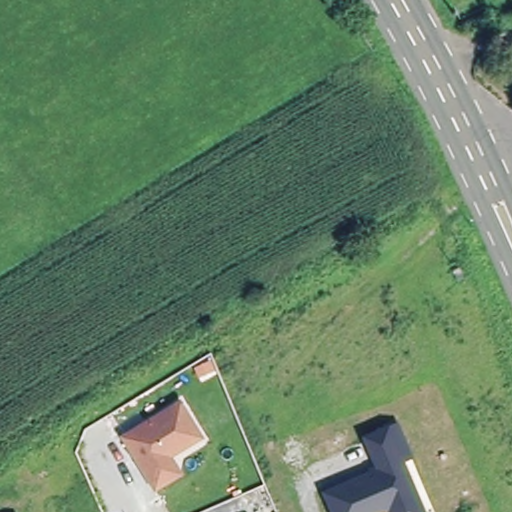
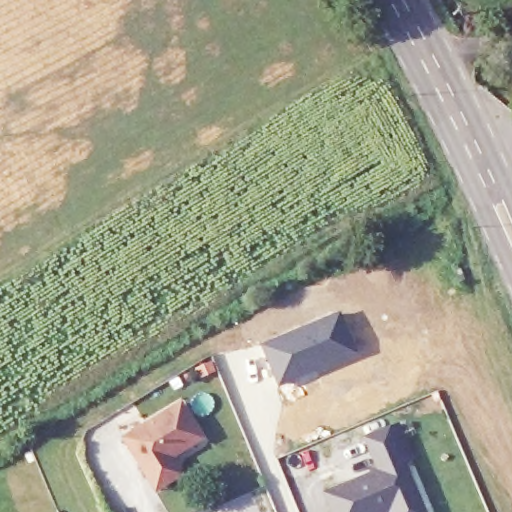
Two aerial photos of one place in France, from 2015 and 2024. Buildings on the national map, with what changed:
new [(338,310),(358,359),(312,379),(276,389),(258,344),(338,310)]
unchanged [(152,492),(145,479),(121,439),(178,405),(199,440),(168,459),(170,464),(178,476),(152,492)]
unchanged [(388,509),(382,506),(369,512),(333,512),(324,492),(378,469),(365,437),(397,424),(411,457),(401,461),(420,504),(423,512),(390,512),(388,509)]

